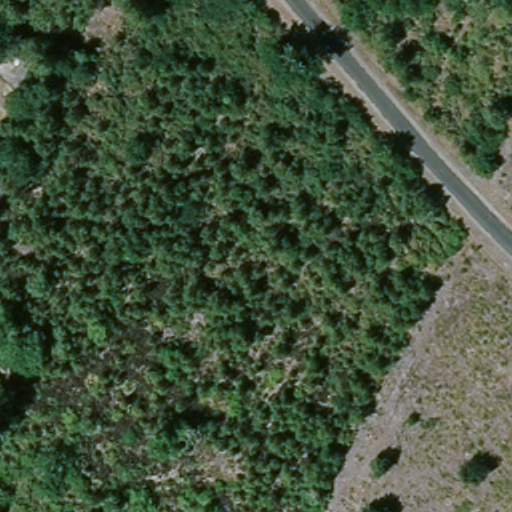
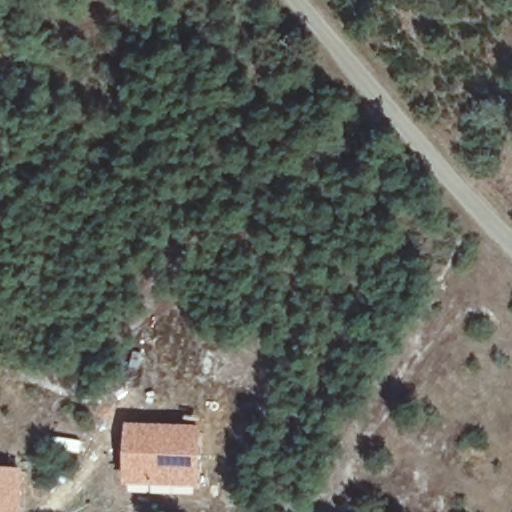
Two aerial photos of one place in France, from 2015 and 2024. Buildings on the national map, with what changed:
new [(129,481),(131,429),(201,431),(199,483),(129,481)]
new [(25,470),(24,512),(0,512),(0,468),(25,470)]

